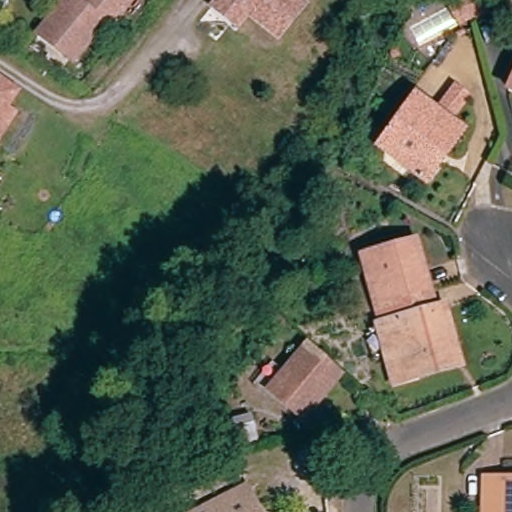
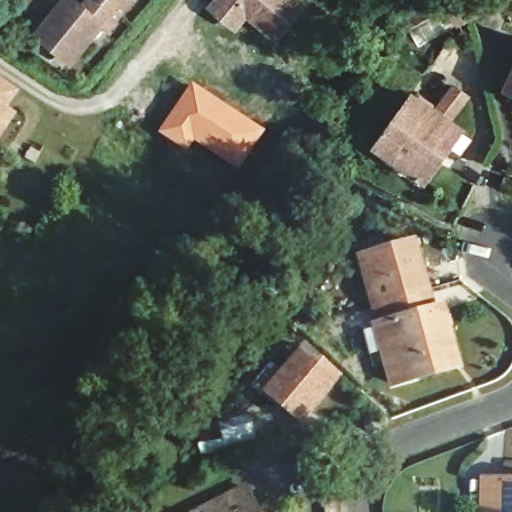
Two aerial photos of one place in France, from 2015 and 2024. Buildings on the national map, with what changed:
unchanged [(91,3),(94,0),(128,0),(111,20),(106,16),(75,53),(40,23),(57,3),(61,0),(88,0),(91,3)]
unchanged [(232,25),(215,9),(223,0),(294,0),(306,11),(279,41),(250,15),(237,30),(232,25)]
unchanged [(470,20),(461,26),(447,5),(455,2),(465,0),(470,20)]
unchanged [(10,107),(19,112),(0,141),(0,76),(21,90),(10,107)]
new [(192,82),(266,130),(238,170),(195,142),(188,151),(157,131),(192,82)]
unchanged [(510,91),(512,87),(512,92),(510,91)]
unchanged [(439,167),(423,189),(377,156),(417,101),(436,115),(455,90),(469,101),(450,126),(453,127),(462,134),(439,167)]
unchanged [(376,306),(362,257),(411,243),(426,291),(376,306)]
unchanged [(409,383),(390,388),(373,328),(382,325),(376,306),(426,291),(431,311),(443,307),(450,328),(460,368),(409,383)]
unchanged [(297,421),(264,389),(305,346),(338,378),(297,421)]
unchanged [(249,430),(221,436),(217,419),(245,413),(249,430)]
unchanged [(481,512),(481,481),(512,482),(512,512),(481,512)]
unchanged [(228,512),(262,494),(271,512),(228,512)]

